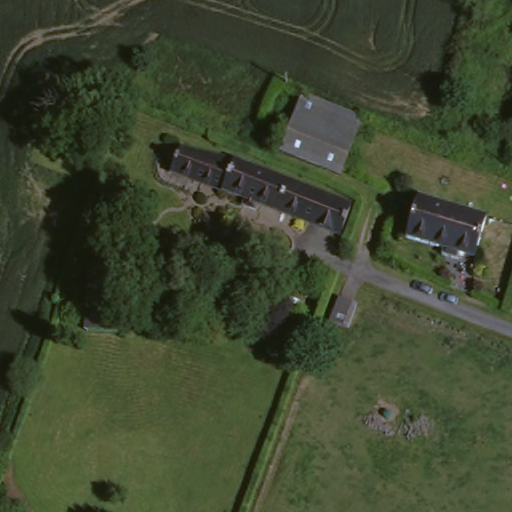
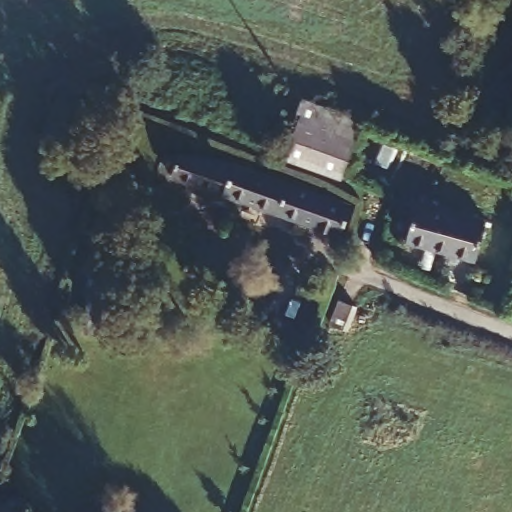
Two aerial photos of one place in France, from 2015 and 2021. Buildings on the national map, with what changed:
unchanged [(278,157),(298,102),(360,125),(340,179),(278,157)]
unchanged [(337,242),(284,223),(169,182),(177,157),(237,175),(349,208),(337,242)]
unchanged [(475,263),(459,258),(458,266),(443,263),(445,255),(404,243),(419,200),(488,221),(475,263)]
unchanged [(83,266),(117,266),(116,335),(84,334),(83,266)]
unchanged [(354,338),(332,331),(341,307),(363,316),(354,338)]

